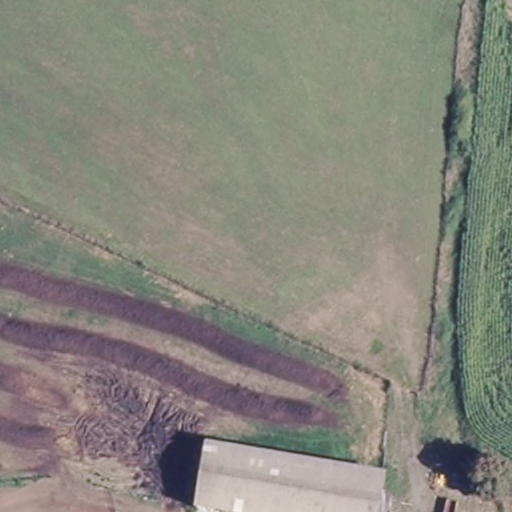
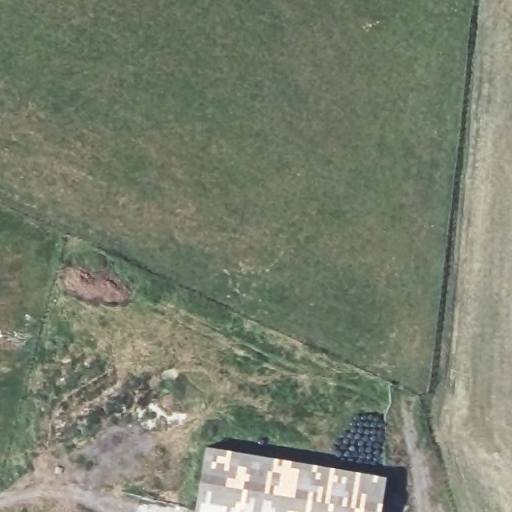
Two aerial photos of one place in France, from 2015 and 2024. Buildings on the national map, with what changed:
unchanged [(388,484),(382,512),(218,512),(198,507),(213,445),(388,484)]

